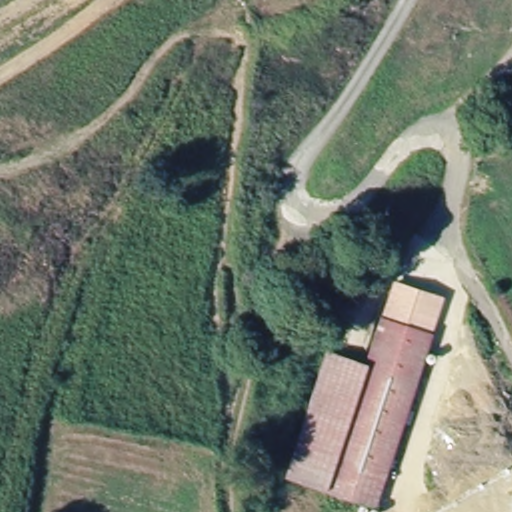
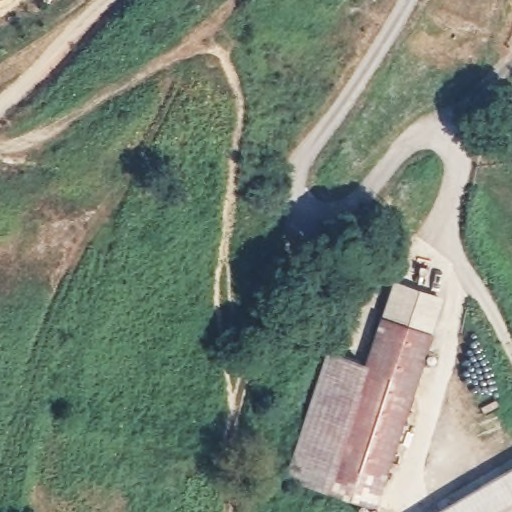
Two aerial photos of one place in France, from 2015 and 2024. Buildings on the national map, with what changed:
unchanged [(341,365),(361,372),(372,336),(387,290),(407,297),(435,305),(373,508),(286,481),(285,480),(296,444),(312,392),(322,359),(341,365)]
new [(512,512),(435,512),(512,466),(512,512)]

